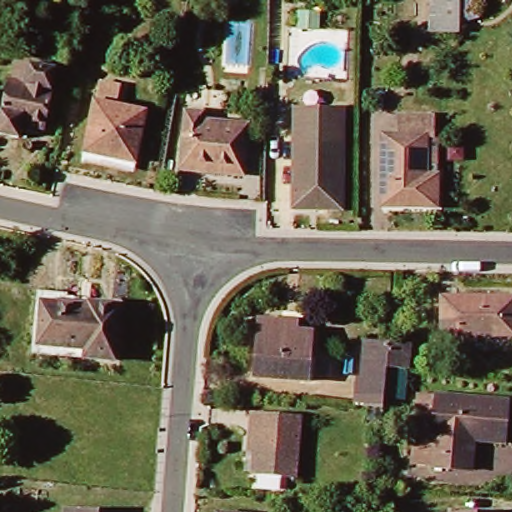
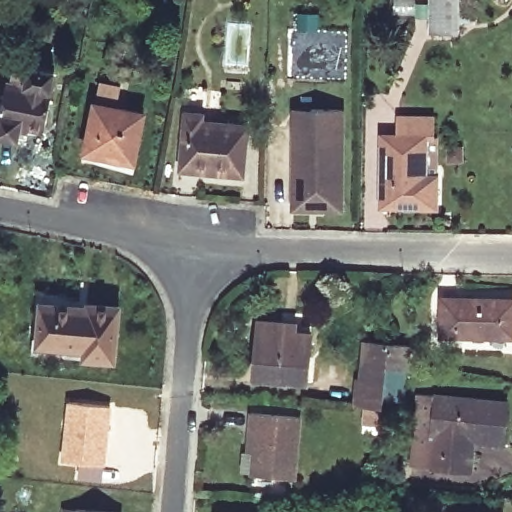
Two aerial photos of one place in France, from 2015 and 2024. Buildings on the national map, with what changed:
unchanged [(457,0),(455,29),(429,28),(430,0),(457,0)]
unchanged [(0,126),(8,85),(15,85),(19,67),(50,74),(46,94),(47,94),(40,140),(23,137),(22,142),(0,137),(0,126)]
unchanged [(100,85),(120,89),(115,113),(141,117),(132,165),(87,157),(100,85)]
unchanged [(212,175),(180,170),(188,114),(200,115),(201,122),(247,129),(240,176),(212,175)]
unchanged [(341,116),(337,206),(288,205),(292,114),(341,116)]
unchanged [(432,207),(376,205),(377,134),(393,134),(393,116),(425,117),(425,139),(425,180),(433,181),(432,207)]
unchanged [(438,295),(512,299),(512,338),(437,335),(438,295)]
unchanged [(87,298),(120,303),(111,361),(78,356),(78,351),(33,344),(40,301),(87,308),(87,298)]
unchanged [(258,315),(290,318),(288,335),(307,336),(303,380),(252,375),(258,315)]
unchanged [(356,402),(360,345),(385,347),(403,348),(401,375),(383,373),(382,405),(356,402)]
unchanged [(435,463),(423,463),(428,398),(440,398),(512,403),(512,417),(510,438),(479,436),(475,467),(435,463)]
new [(66,400),(110,405),(102,480),(75,480),(77,463),(58,462),(66,400)]
unchanged [(300,418),(296,479),(250,476),(254,428),(249,428),(250,415),(300,418)]
unchanged [(114,512),(66,512),(67,503),(82,505),(114,510),(114,512)]
unchanged [(452,511),(459,512),(452,512),(452,511)]

